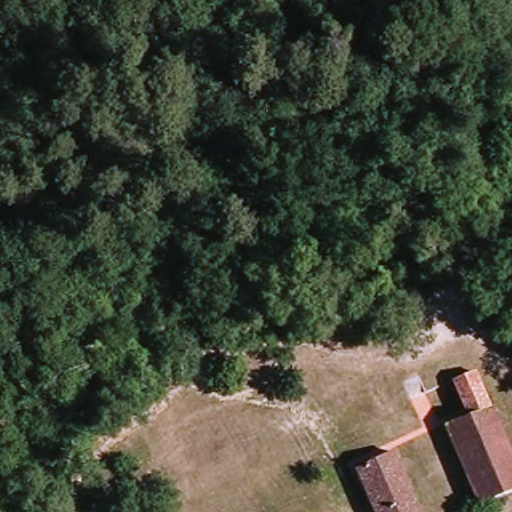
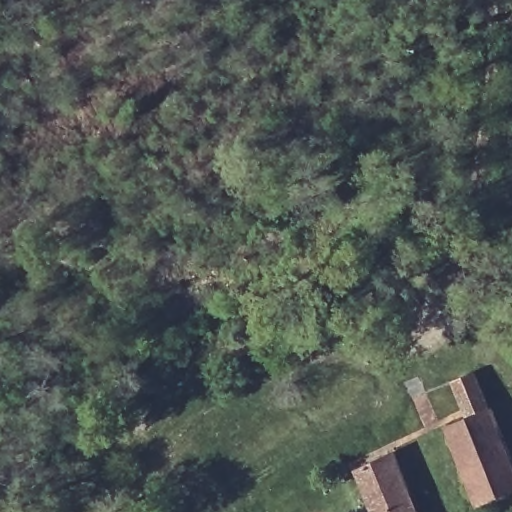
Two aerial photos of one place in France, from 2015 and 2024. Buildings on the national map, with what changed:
unchanged [(473,373),(494,428),(512,466),(512,493),(475,508),(442,431),(467,421),(451,382),(473,373)]
unchanged [(370,512),(354,473),(392,457),(415,512),(370,512)]

